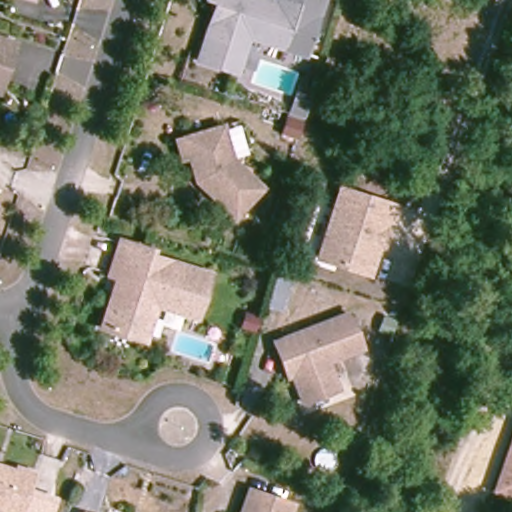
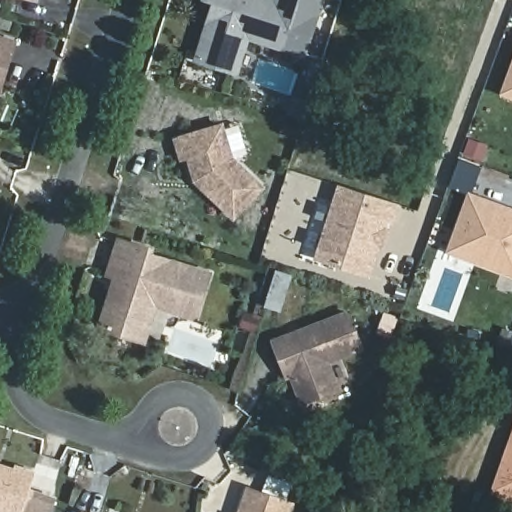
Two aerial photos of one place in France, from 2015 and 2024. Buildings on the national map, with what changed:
unchanged [(325,0),(308,53),(251,35),(240,69),(203,58),(215,22),(221,3),(212,0),(269,0),(279,3),(280,0),(325,0)]
unchanged [(13,48),(1,86),(0,88),(0,45),(13,48)]
new [(512,76),(512,95),(506,92),(512,76)]
unchanged [(288,115),(290,109),(297,88),(311,93),(308,102),(304,113),(302,119),(288,115)]
unchanged [(301,123),(296,136),(282,131),(287,117),(301,122),(301,123)]
unchanged [(229,164),(260,192),(232,222),(202,195),(206,191),(199,184),(194,186),(187,162),(180,164),(174,145),(220,131),(229,164)]
unchanged [(314,260),(337,183),(401,203),(394,226),(389,225),(383,249),(379,248),(369,276),(314,260)]
new [(469,194),(511,210),(512,210),(512,274),(470,258),(448,249),(454,233),(469,194)]
unchanged [(118,246),(149,255),(147,261),(158,264),(208,280),(195,322),(155,309),(146,313),(137,343),(128,341),(100,332),(111,297),(116,282),(108,279),(118,246)]
unchanged [(283,311),(263,305),(275,268),(293,273),(283,311)]
unchanged [(280,362),(273,342),(347,315),(359,350),(325,362),(335,390),(300,402),(290,375),(285,377),(280,362)]
unchanged [(512,496),(495,490),(512,442),(512,496)]
unchanged [(20,512),(1,512),(0,512),(0,467),(15,471),(16,467),(33,473),(20,512)]
unchanged [(247,494),(290,509),(289,512),(241,512),(247,494)]

